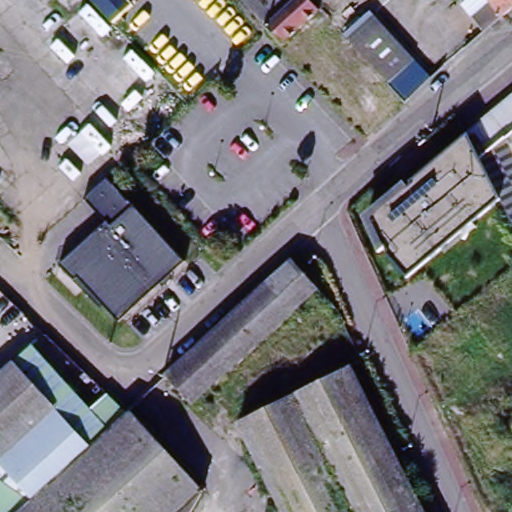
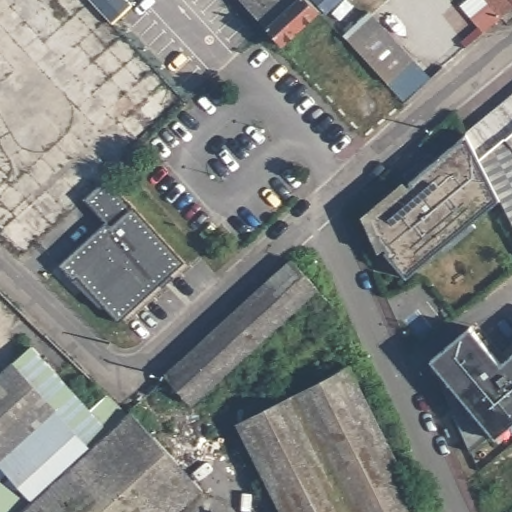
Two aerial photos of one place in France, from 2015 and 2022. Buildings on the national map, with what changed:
unchanged [(103,0),(94,8),(87,0),(103,0)]
unchanged [(240,0),(292,0),(264,26),(240,0)]
unchanged [(284,48),(264,26),(292,0),(308,0),(321,13),(284,48)]
unchanged [(485,30),(473,14),(487,0),(512,0),(512,5),(485,30)]
unchanged [(414,60),(389,82),(355,45),(379,22),(414,60)]
unchanged [(512,156),(512,228),(466,138),(512,97),(512,138),(506,143),(512,156)]
unchanged [(499,202),(407,278),(383,251),(378,254),(361,217),(466,138),(499,202)]
new [(0,173),(0,157),(8,165),(0,173)]
unchanged [(78,193),(100,173),(145,218),(181,255),(156,279),(116,318),(74,275),(70,278),(54,262),(99,218),(76,195),(78,193)]
unchanged [(291,260),(313,284),(316,288),(191,404),(165,375),(291,260)]
new [(470,325),(497,356),(512,345),(512,418),(494,435),(428,366),(424,352),(470,325)]
unchanged [(0,379),(33,350),(90,413),(108,397),(126,415),(19,512),(0,512),(0,379)]
unchanged [(237,424),(349,367),(422,512),(283,512),(237,424)]
unchanged [(130,412),(131,412),(200,492),(188,512),(19,512),(126,415),(130,412)]

